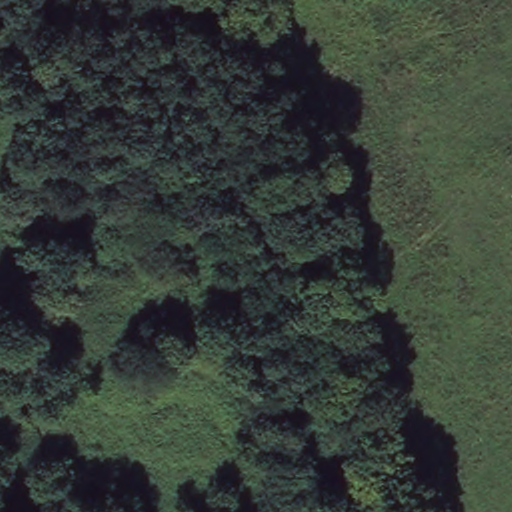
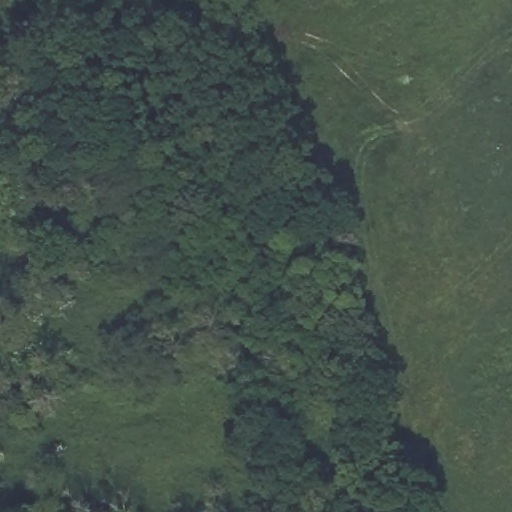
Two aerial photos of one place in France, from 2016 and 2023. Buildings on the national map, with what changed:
[]

